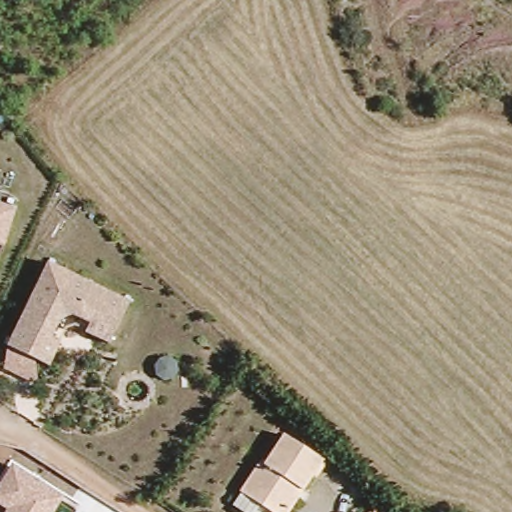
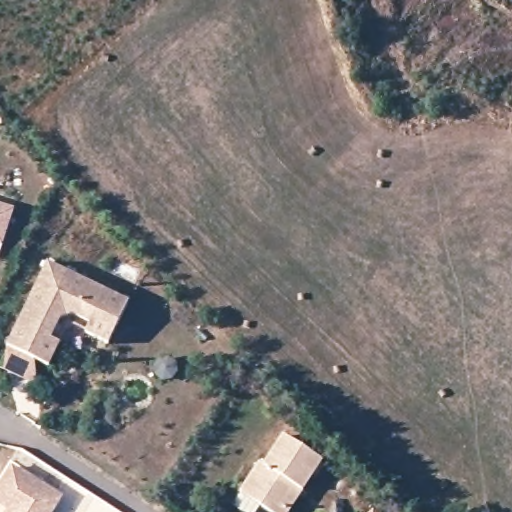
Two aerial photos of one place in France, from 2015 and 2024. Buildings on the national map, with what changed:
unchanged [(1,242),(0,242),(0,201),(13,205),(1,242)]
unchanged [(7,348),(45,264),(125,298),(107,340),(87,332),(90,322),(75,315),(59,322),(54,337),(64,342),(53,370),(7,348)]
unchanged [(261,464),(267,468),(287,438),(323,465),(292,512),(261,512),(238,496),(261,464)]
unchanged [(57,512),(11,512),(12,509),(0,500),(0,492),(18,465),(66,498),(57,512)]

